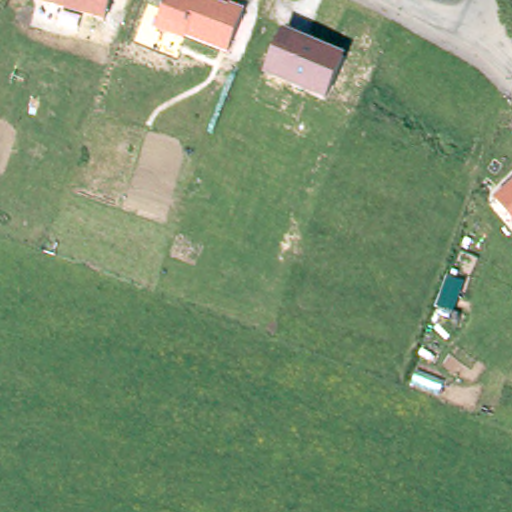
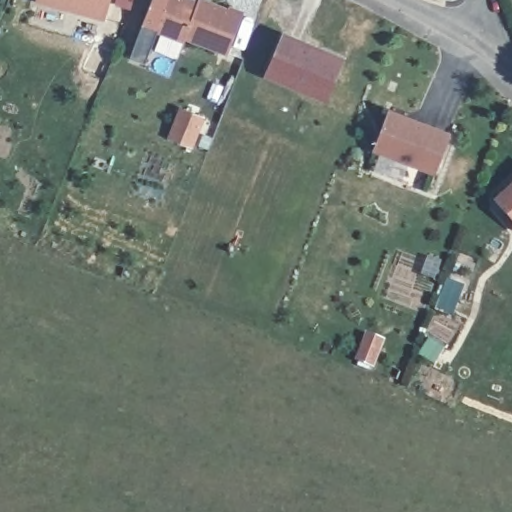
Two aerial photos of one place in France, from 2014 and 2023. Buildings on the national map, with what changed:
unchanged [(103,20),(38,0),(109,0),(103,20)]
unchanged [(228,5),(229,4),(246,11),(231,52),(188,35),(186,40),(156,29),(167,0),(214,0),(228,5)]
unchanged [(344,56),(326,102),(263,76),(279,29),(344,56)]
new [(450,130),(436,172),(373,150),(388,107),(450,130)]
new [(204,120),(194,147),(170,137),(181,111),(204,120)]
unchanged [(490,200),(512,180),(512,226),(490,200)]

